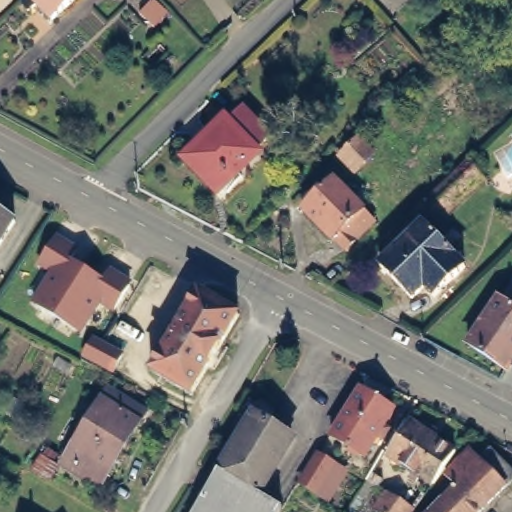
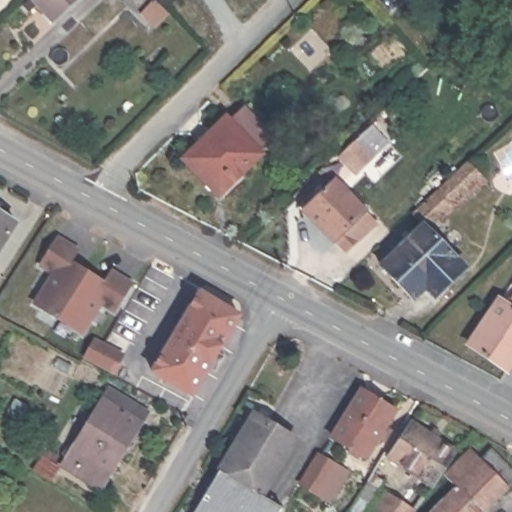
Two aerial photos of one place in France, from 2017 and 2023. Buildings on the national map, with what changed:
unchanged [(76,0),(47,26),(23,0),(24,0),(76,0)]
unchanged [(80,0),(85,0),(82,3),(80,0)]
unchanged [(268,133),(250,150),(251,153),(215,188),(185,156),(222,119),(224,121),(240,106),(268,133)]
unchanged [(337,156),(357,138),(365,130),(380,146),(372,153),(352,172),(337,156)]
unchanged [(477,174),(435,214),(431,210),(418,222),(409,211),(440,182),(465,160),(477,174)]
unchanged [(315,184),(320,189),(330,181),(370,222),(342,248),(331,238),(329,240),(298,209),(301,207),(297,201),(315,184)]
unchanged [(0,244),(0,207),(17,218),(0,244)]
unchanged [(460,266),(430,294),(421,285),(408,297),(376,264),(397,244),(393,239),(402,231),(406,234),(418,222),(460,266)]
unchanged [(78,247),(71,259),(105,279),(111,268),(133,281),(115,314),(100,305),(82,334),(32,303),(50,274),(37,265),(58,235),(78,247)]
unchanged [(503,369),(467,344),(512,279),(512,357),(503,369)]
unchanged [(179,334),(173,331),(177,323),(183,327),(204,290),(244,314),(197,393),(158,371),(179,334)]
unchanged [(85,356),(95,339),(122,354),(113,371),(85,356)]
unchanged [(391,412),(363,458),(328,438),(357,392),(391,412)]
unchanged [(126,406),(143,416),(137,426),(98,493),(60,470),(104,394),(126,406)]
unchanged [(237,454),(256,423),(292,446),(262,499),(281,512),(203,512),(237,454)]
unchanged [(386,460),(409,429),(452,459),(445,469),(430,491),(386,460)]
unchanged [(453,494),(443,482),(467,458),(478,468),(490,458),(512,478),(512,486),(485,512),(434,512),(453,494)]
unchanged [(323,463),(340,473),(325,498),(307,488),(323,463)]
unchanged [(368,490),(359,505),(350,500),(360,485),(368,490)]
unchanged [(383,497),(400,509),(408,498),(419,504),(413,512),(373,512),(383,497)]

